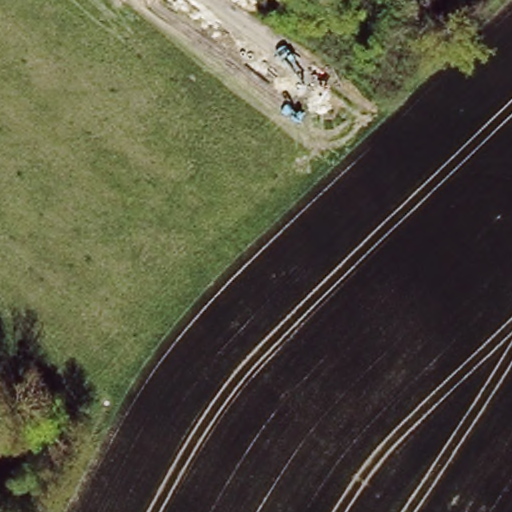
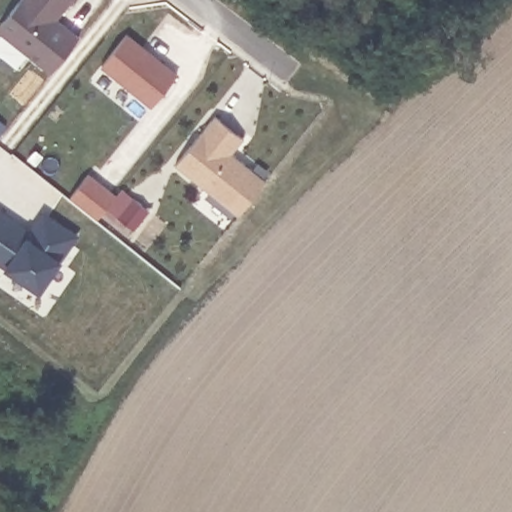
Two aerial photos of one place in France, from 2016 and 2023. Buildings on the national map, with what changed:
new [(58,19),(80,37),(51,73),(0,34),(0,28),(21,0),(74,0),(58,19)]
new [(151,108),(101,68),(128,34),(179,74),(151,108)]
new [(238,216),(175,166),(215,115),(245,138),(232,154),(267,180),(238,216)]
new [(6,123),(0,131),(0,118),(6,123)]
new [(135,231),(107,211),(98,220),(70,198),(90,174),(116,196),(122,188),(151,212),(135,231)]
new [(64,259),(41,293),(5,268),(0,265),(0,210),(30,230),(43,211),(80,236),(64,259)]

